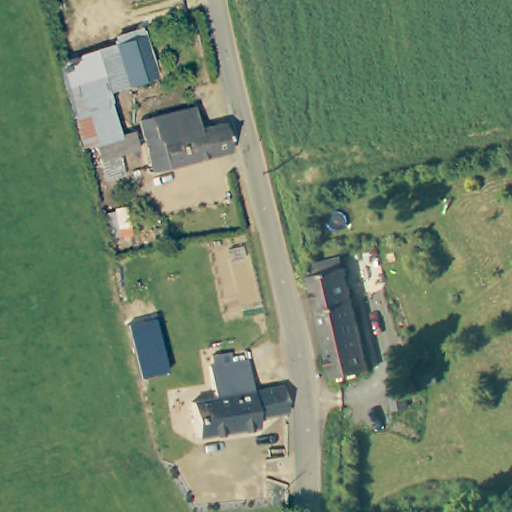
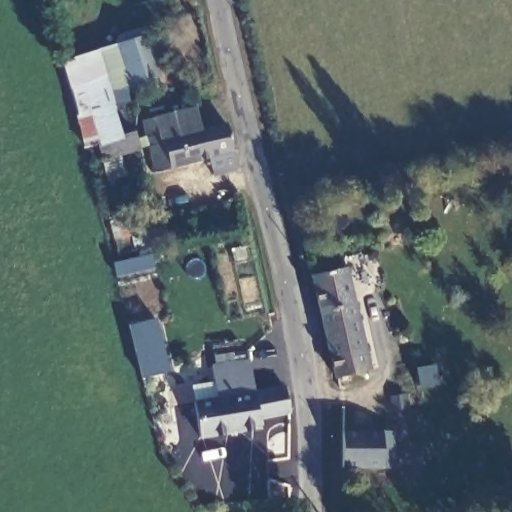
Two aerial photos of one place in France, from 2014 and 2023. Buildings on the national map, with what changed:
unchanged [(154,78),(126,87),(113,46),(141,38),(154,78)]
unchanged [(94,52),(119,138),(131,134),(134,144),(135,149),(101,159),(100,153),(97,144),(84,148),(59,62),(94,52)]
unchanged [(150,173),(142,141),(137,122),(191,109),(196,128),(197,131),(221,125),(228,153),(150,173)]
unchanged [(346,267),(371,369),(336,378),(311,275),(346,267)]
unchanged [(154,319),(167,373),(141,379),(126,325),(154,319)]
unchanged [(246,361),(251,393),(214,398),(209,367),(246,361)]
unchanged [(258,419),(260,428),(198,438),(192,402),(214,398),(251,393),(283,388),(287,414),(258,419)]
new [(397,469),(340,469),(340,432),(396,432),(397,469)]

